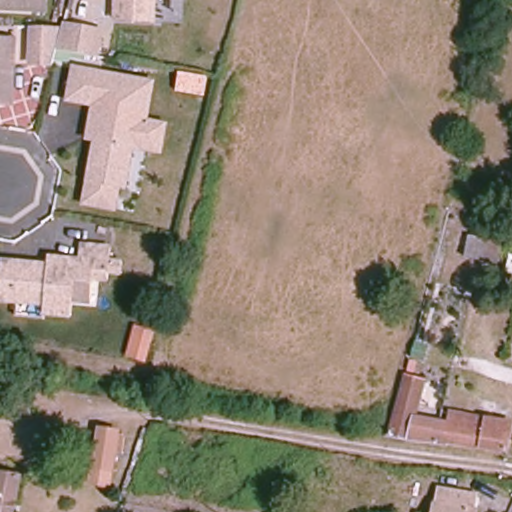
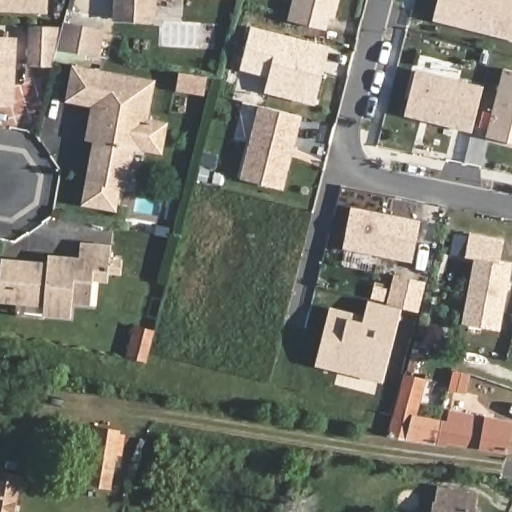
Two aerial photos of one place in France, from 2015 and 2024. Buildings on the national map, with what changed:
unchanged [(43,12),(0,10),(0,0),(44,0),(43,12)]
unchanged [(152,19),(112,17),(113,0),(153,0),(152,19)]
new [(336,17),(331,16),(328,30),(292,21),(298,0),(341,0),(336,17)]
new [(441,0),(512,0),(512,34),(436,21),(441,0)]
unchanged [(23,64),(24,27),(55,28),(56,24),(95,31),(90,57),(49,50),(45,65),(23,64)]
new [(326,48),(331,50),(325,73),(317,106),(269,93),(273,77),(243,70),(254,29),(326,48)]
unchanged [(11,36),(8,100),(0,100),(0,36),(11,36)]
unchanged [(91,142),(84,142),(90,106),(65,102),(72,66),(156,79),(149,119),(167,122),(161,155),(133,152),(126,191),(119,191),(115,212),(81,205),(91,142)]
new [(176,91),(179,71),(208,76),(204,96),(176,91)]
new [(504,72),(512,74),(512,146),(490,141),(492,133),(484,132),(487,117),(494,119),(504,72)]
new [(416,74),(484,90),(474,134),(405,117),(416,74)]
new [(284,193),(243,182),(262,110),(302,120),(294,153),(293,160),(284,193)]
new [(414,262),(347,249),(355,212),(421,225),(414,262)]
new [(480,278),(483,261),(467,258),(454,256),(457,235),(471,238),(472,237),(504,243),(500,266),(512,267),(500,329),(467,323),(476,278),(480,278)]
unchanged [(13,300),(0,299),(0,260),(33,262),(43,262),(43,255),(74,256),(74,241),(104,242),(104,256),(117,256),(117,268),(103,267),(103,275),(88,274),(86,294),(68,293),(68,297),(68,312),(41,311),(41,316),(13,315),(13,300)]
new [(398,276),(426,283),(418,312),(390,306),(398,276)]
new [(353,320),(367,323),(372,305),(401,312),(384,380),(340,368),(339,372),(319,367),(332,315),(353,320)]
demolished [(47,377),(43,397),(0,389),(0,370),(47,377)]
unchanged [(447,441),(445,446),(389,435),(405,375),(422,379),(419,390),(421,391),(417,409),(485,420),(512,424),(512,438),(509,452),(481,447),(447,441)]
unchanged [(94,476),(96,461),(99,442),(102,423),(123,427),(120,446),(117,465),(115,480),(94,476)]
unchanged [(18,477),(12,512),(0,512),(0,474),(18,477)]
unchanged [(479,511),(479,512),(436,512),(442,487),(478,497),(476,510),(479,511)]

